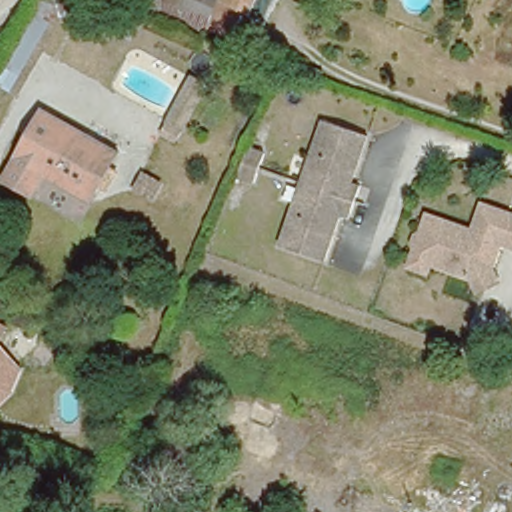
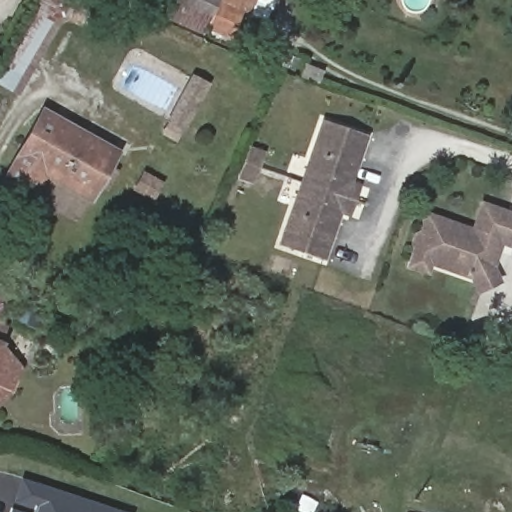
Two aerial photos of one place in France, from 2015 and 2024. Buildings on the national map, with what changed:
unchanged [(105,0),(137,14),(129,32),(59,2),(20,68),(0,59),(35,0),(105,0)]
unchanged [(216,0),(205,27),(203,32),(139,4),(141,0),(216,0)]
unchanged [(244,41),(205,27),(216,0),(232,0),(259,12),(244,41)]
unchanged [(232,0),(264,0),(259,12),(232,0)]
unchanged [(194,64),(206,70),(184,112),(181,110),(173,125),(164,120),(194,64)]
unchanged [(304,65),(322,71),(318,84),(299,78),(304,65)]
unchanged [(44,170),(33,191),(24,186),(4,175),(44,105),(118,146),(109,162),(119,167),(109,187),(99,181),(96,186),(90,196),(44,170)]
unchanged [(298,173),(319,112),(364,128),(348,175),(358,178),(353,192),(298,173)]
unchanged [(134,189),(144,172),(164,183),(156,199),(134,189)]
unchanged [(353,192),(347,209),(337,205),(320,252),(276,237),(298,173),(353,192)]
unchanged [(477,286),(471,272),(429,258),(426,267),(424,267),(408,262),(414,244),(412,241),(416,231),(419,229),(425,211),(443,217),(471,226),(480,200),(512,210),(512,237),(511,241),(494,235),(492,243),(494,249),(490,262),(497,276),(477,286)]
unchanged [(1,346),(22,373),(11,395),(0,404),(0,326),(9,331),(1,346)]
new [(31,508),(13,502),(20,478),(126,512),(30,512),(31,508)]
unchanged [(271,504),(295,512),(268,512),(271,504)]
new [(10,511),(15,512),(10,512),(10,511)]

